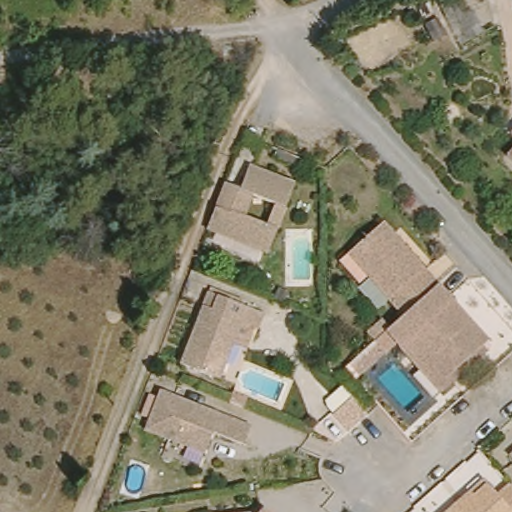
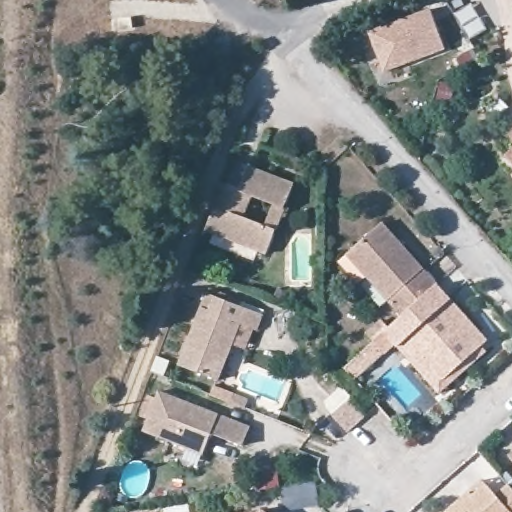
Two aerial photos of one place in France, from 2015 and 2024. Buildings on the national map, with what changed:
new [(384,72),(369,32),(431,9),(446,48),(384,72)]
new [(130,17),(130,29),(112,30),(110,20),(130,17)]
unchanged [(512,130),(512,142),(506,136),(512,130)]
unchanged [(512,148),(512,168),(502,158),(512,148)]
unchanged [(270,251),(211,226),(229,179),(246,186),(256,162),(300,182),(290,205),(282,225),(270,251)]
unchanged [(350,254),(386,224),(439,282),(405,314),(391,298),(373,279),(350,254)]
unchanged [(399,342),(387,352),(386,350),(356,378),(347,368),(377,340),(370,333),(386,318),(393,325),(405,314),(439,282),(491,339),(447,377),(437,386),(402,345),(399,342)]
unchanged [(186,365),(176,361),(203,288),(258,308),(252,324),(250,323),(242,345),(228,340),(215,375),(186,365)]
unchanged [(154,387),(245,423),(238,442),(204,429),(196,450),(138,427),(154,387)]
unchanged [(345,398),(361,415),(343,434),(326,417),(345,398)]
unchanged [(512,453),(512,457),(510,455),(512,453)]
new [(276,465),(279,486),(253,490),(249,470),(276,465)]
unchanged [(512,489),(512,512),(438,512),(452,500),(478,476),(482,480),(492,491),(504,481),(512,489)]
unchanged [(194,510),(244,505),(247,501),(262,512),(195,512),(194,510)]

